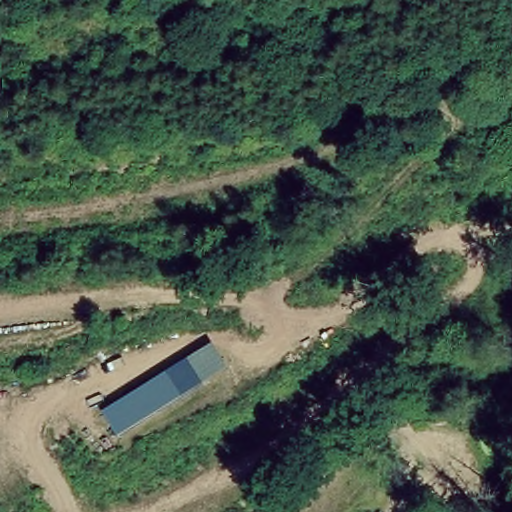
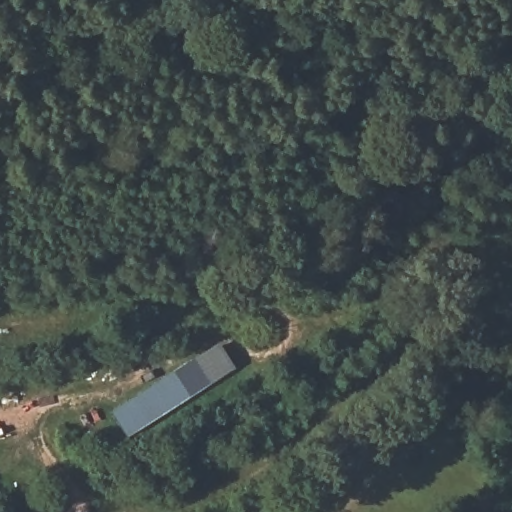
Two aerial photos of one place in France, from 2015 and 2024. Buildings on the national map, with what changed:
unchanged [(128,435),(112,411),(195,357),(210,382),(128,435)]

